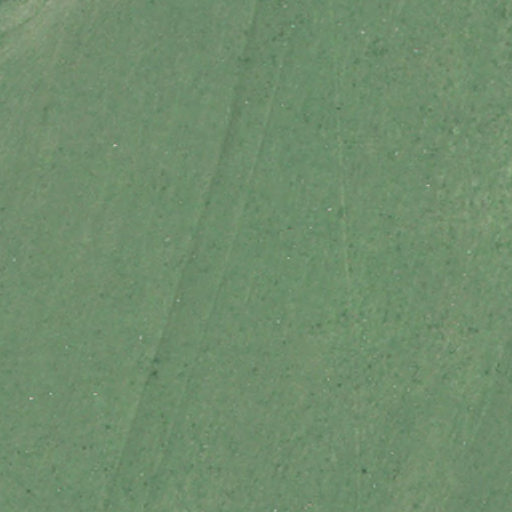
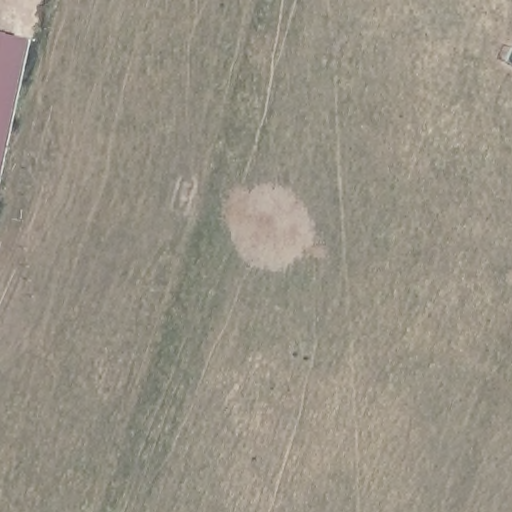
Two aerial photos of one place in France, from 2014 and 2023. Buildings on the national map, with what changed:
new [(28,39),(0,169),(0,32),(28,39)]

